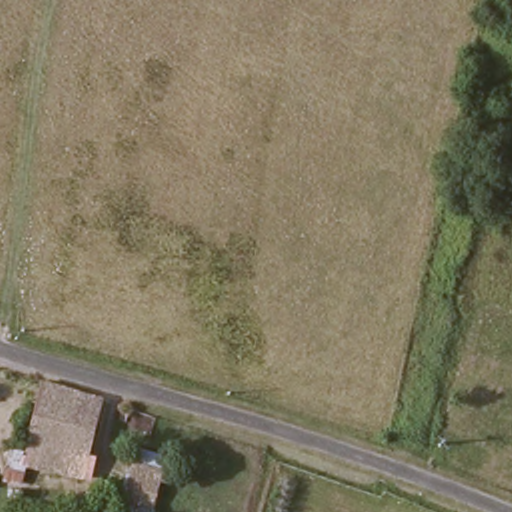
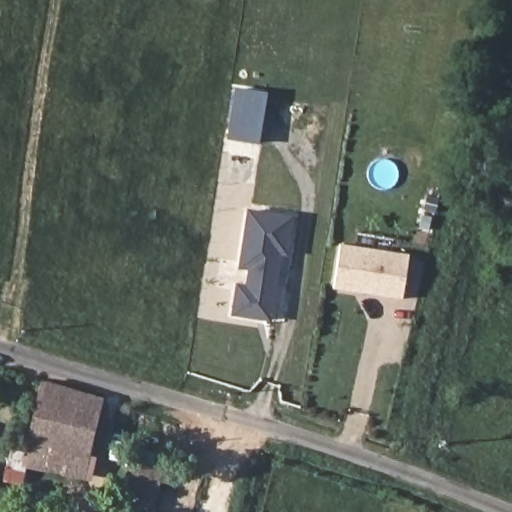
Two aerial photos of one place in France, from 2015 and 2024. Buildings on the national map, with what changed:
new [(236,87),(267,92),(259,143),(228,139),(236,87)]
new [(234,276),(249,279),(251,264),(237,262),(246,208),(292,215),(286,255),(291,256),(280,320),(228,311),(234,276)]
new [(340,245),(410,255),(403,299),(334,289),(340,245)]
unchanged [(27,453),(42,381),(104,399),(92,459),(89,479),(49,471),(29,467),(27,479),(26,484),(1,480),(2,474),(8,449),(27,453)]
unchanged [(155,509),(130,504),(137,470),(162,474),(155,509)]

